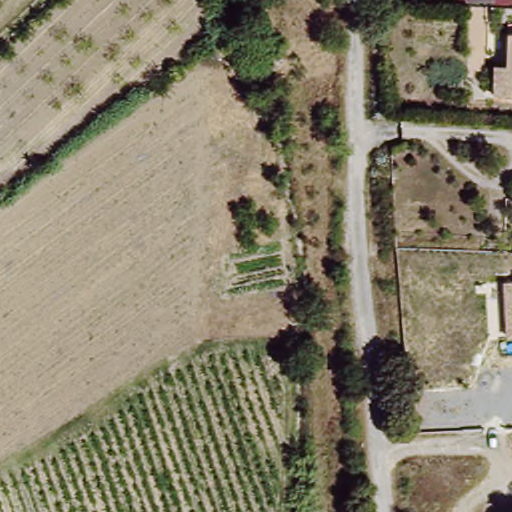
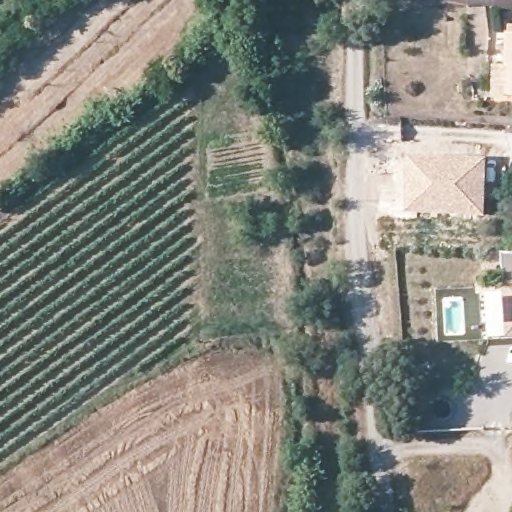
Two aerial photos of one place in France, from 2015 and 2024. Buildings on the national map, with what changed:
unchanged [(503,65),(505,34),(512,34),(512,96),(501,96),(488,95),(490,64),(503,65)]
new [(406,153),(486,157),(485,215),(405,212),(406,153)]
unchanged [(512,335),(506,336),(505,280),(512,279),(512,335)]

